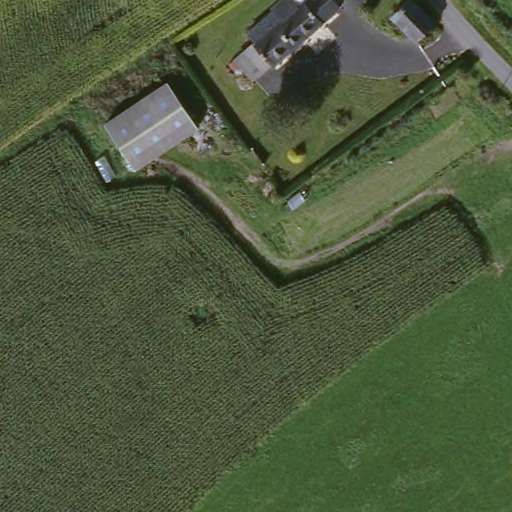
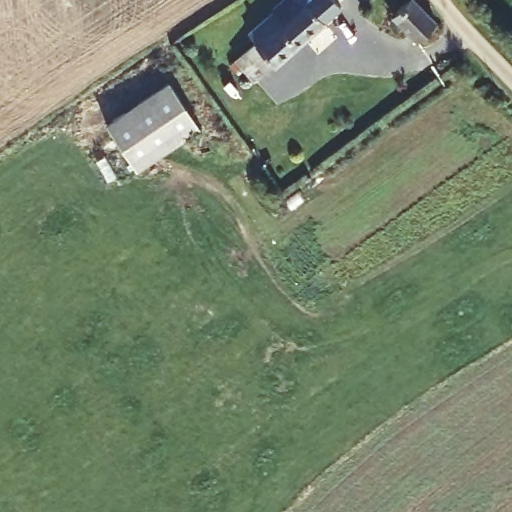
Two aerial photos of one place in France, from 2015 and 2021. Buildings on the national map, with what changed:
unchanged [(339,14),(271,71),(270,69),(251,85),(232,62),(252,46),(244,37),(270,15),(267,12),(282,0),(327,0),(339,14)]
unchanged [(438,22),(421,42),(392,15),(408,0),(417,0),(438,22)]
unchanged [(167,82),(196,126),(132,167),(103,123),(167,82)]

